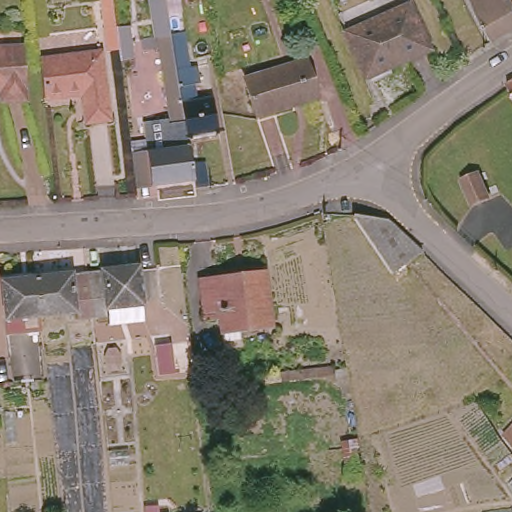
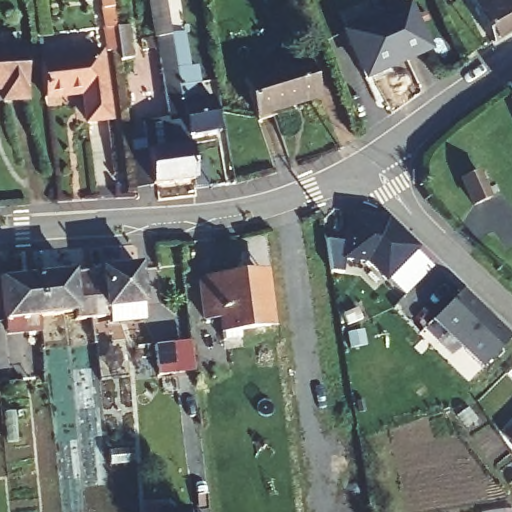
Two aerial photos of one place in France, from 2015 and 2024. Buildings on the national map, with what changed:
unchanged [(205,184),(190,187),(189,180),(133,186),(128,151),(142,149),(138,116),(159,114),(160,120),(169,119),(168,110),(163,110),(154,39),(148,0),(170,0),(174,25),(190,22),(191,34),(182,35),(185,57),(191,57),(194,61),(197,80),(189,81),(191,96),(208,94),(213,131),(182,135),(186,160),(202,157),(205,184)]
unchanged [(475,15),(469,0),(480,0),(482,4),(490,0),(505,0),(508,7),(512,5),(512,35),(493,46),(475,15)]
unchanged [(410,6),(430,51),(365,78),(347,32),(410,6)]
unchanged [(21,99),(0,99),(0,46),(20,45),(21,99)]
unchanged [(105,121),(81,122),(76,92),(41,96),(36,59),(96,52),(105,121)]
unchanged [(302,63),(311,97),(283,105),(284,110),(251,116),(242,76),(302,63)]
unchanged [(508,85),(512,82),(512,95),(510,91),(508,85)]
unchanged [(482,175),(495,204),(476,213),(463,184),(482,175)]
unchanged [(374,249),(348,212),(382,217),(417,247),(392,274),(374,249)]
unchanged [(133,267),(138,305),(101,308),(102,316),(85,317),(80,273),(133,267)]
unchanged [(214,313),(198,315),(194,276),(259,269),(267,322),(216,327),(214,313)]
unchanged [(30,278),(80,273),(85,317),(69,320),(68,312),(34,315),(30,278)]
unchanged [(0,318),(0,281),(30,278),(34,315),(0,318)]
new [(464,288),(512,337),(480,371),(432,322),(464,288)]
new [(169,343),(173,373),(156,375),(152,346),(169,343)]
unchanged [(512,422),(512,446),(501,433),(512,422)]
demolished [(349,480),(342,442),(354,440),(360,478),(349,480)]

